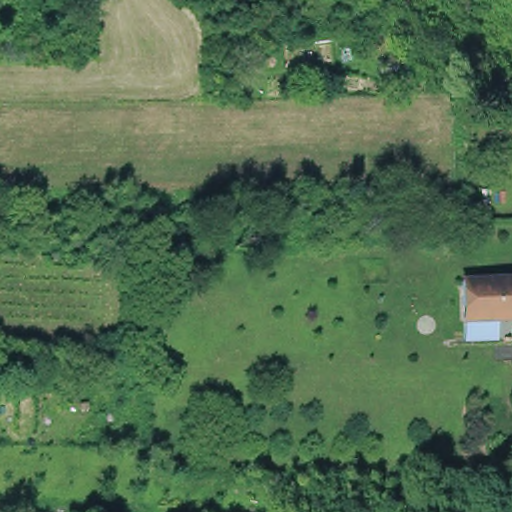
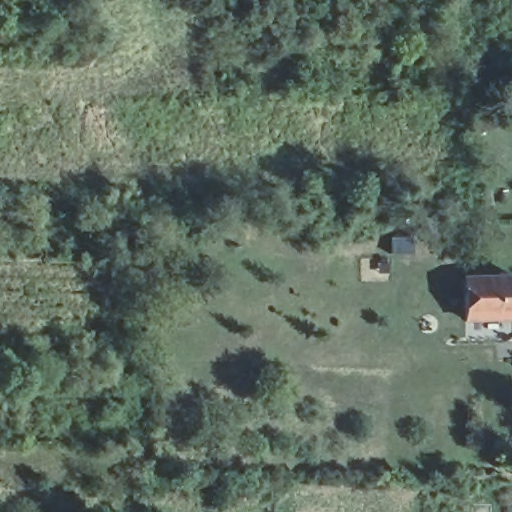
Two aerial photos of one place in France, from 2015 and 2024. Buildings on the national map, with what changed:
unchanged [(488,314),(459,314),(459,291),(458,274),(461,274),(512,273),(512,313),(505,313),(488,314)]

